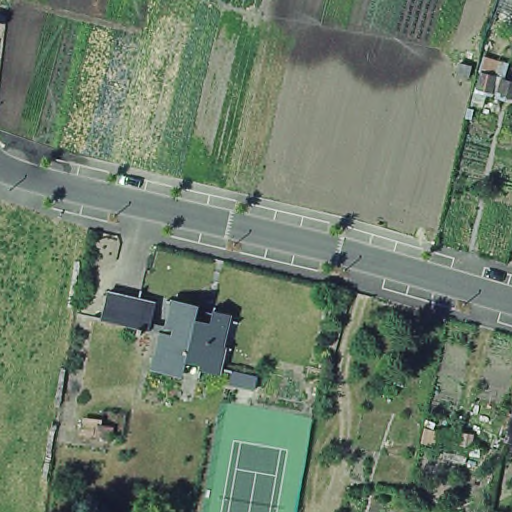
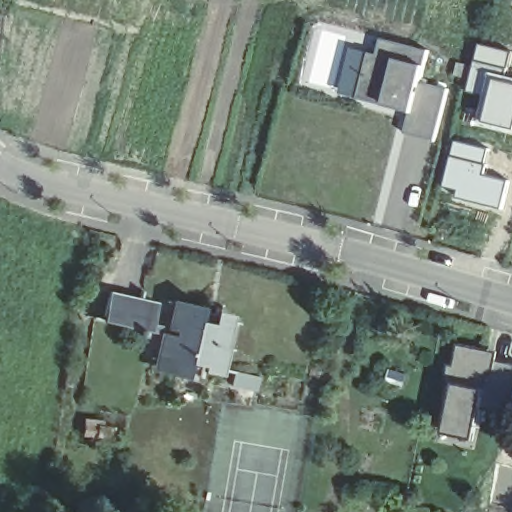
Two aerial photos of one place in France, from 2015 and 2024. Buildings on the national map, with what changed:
unchanged [(205,0),(203,9),(170,0),(205,0)]
new [(405,133),(411,114),(357,99),(370,54),(378,56),(382,40),(430,52),(421,83),(449,90),(436,140),(405,133)]
new [(512,65),(510,76),(512,77),(512,137),(482,130),(490,101),(468,94),(480,44),(512,51),(512,65)]
demolished [(512,86),(512,103),(498,99),(502,83),(512,86)]
new [(484,172),(512,180),(512,183),(506,207),(442,188),(456,136),(488,147),(484,172)]
unchanged [(157,338),(147,336),(142,335),(136,333),(135,337),(131,337),(132,333),(127,332),(127,331),(113,328),(96,324),(103,296),(120,300),(133,303),(149,307),(144,327),(150,328),(158,331),(157,338)]
unchanged [(153,352),(157,338),(158,332),(158,331),(164,332),(170,307),(193,312),(191,324),(206,328),(208,320),(223,324),(217,350),(220,350),(216,367),(215,373),(190,368),(181,366),(180,371),(150,365),(153,352)]
new [(475,440),(446,435),(457,386),(446,383),(450,365),(455,366),(460,345),(497,354),(496,361),(512,364),(512,415),(482,409),(475,440)]
unchanged [(235,370),(259,375),(256,390),(231,385),(235,370)]
unchanged [(512,442),(505,440),(512,414),(512,442)]

